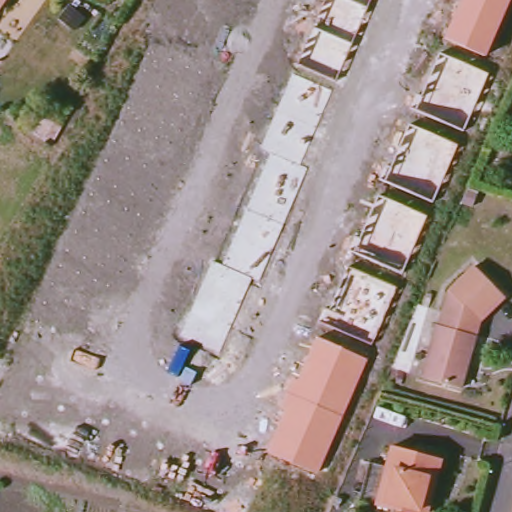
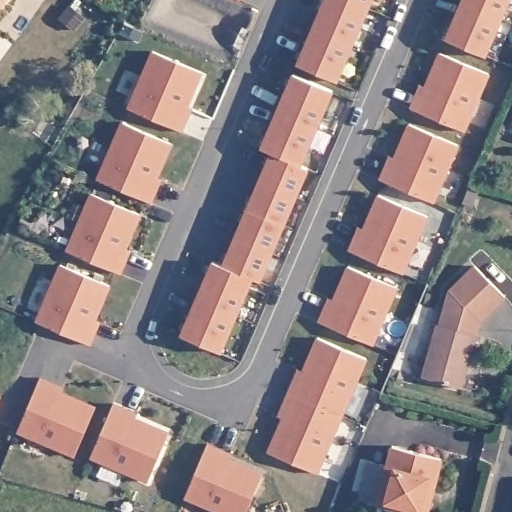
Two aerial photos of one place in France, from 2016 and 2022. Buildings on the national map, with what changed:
new [(6,0),(0,8),(0,0),(6,0)]
demolished [(9,0),(0,13),(0,0),(9,0)]
new [(295,67),(326,0),(376,0),(340,86),(295,67)]
unchanged [(444,37),(461,0),(510,0),(485,57),(444,37)]
new [(182,131),(128,108),(150,51),(200,71),(187,107),(191,108),(182,131)]
unchanged [(488,75),(465,130),(412,106),(417,94),(424,96),(441,52),(488,75)]
new [(211,262),(220,265),(270,152),(261,149),(290,76),(333,92),(302,166),(307,168),(260,283),(252,278),(221,354),(180,337),(211,262)]
new [(152,203),(96,179),(119,123),(171,143),(158,178),(161,179),(152,203)]
unchanged [(457,146),(432,201),(385,180),(408,124),(457,146)]
new [(126,249),(131,252),(122,274),(64,251),(90,192),(140,214),(126,249)]
unchanged [(426,217),(402,273),(353,251),(378,196),(426,217)]
new [(60,264),(110,285),(96,319),(102,321),(92,346),(35,322),(60,264)]
unchanged [(454,315),(447,313),(454,291),(480,266),(510,296),(482,323),(454,315)]
unchanged [(395,287),(370,343),(320,321),(328,304),(333,306),(350,268),(395,287)]
unchanged [(482,323),(463,388),(423,378),(440,325),(450,328),(454,315),(482,323)]
unchanged [(367,360),(317,476),(265,452),(286,410),(278,407),(292,378),(299,380),(317,338),(367,360)]
new [(95,405),(73,458),(16,433),(40,377),(63,387),(62,391),(95,405)]
new [(137,413),(134,417),(168,431),(145,483),(88,459),(114,404),(137,413)]
new [(231,452),(228,457),(262,471),(246,512),(215,512),(183,498),(208,442),(231,452)]
unchanged [(370,460),(387,465),(393,443),(441,457),(432,488),(423,486),(416,512),(410,512),(377,503),(358,498),(370,460)]

